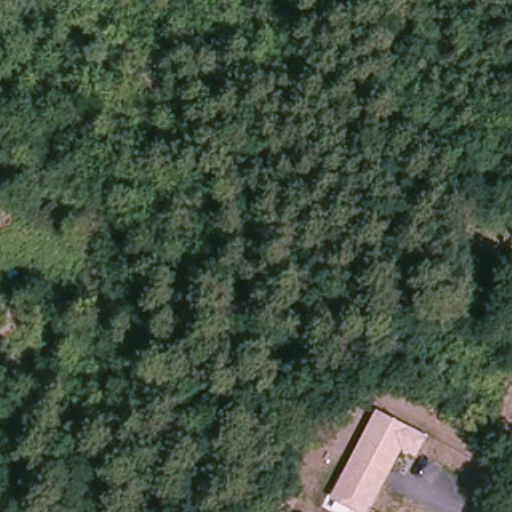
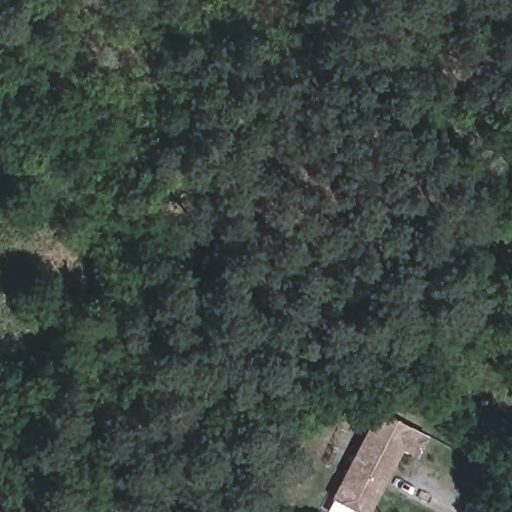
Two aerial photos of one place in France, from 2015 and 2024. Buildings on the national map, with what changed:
unchanged [(418,459),(402,450),(370,512),(356,512),(329,498),(377,408),(428,434),(418,459)]

